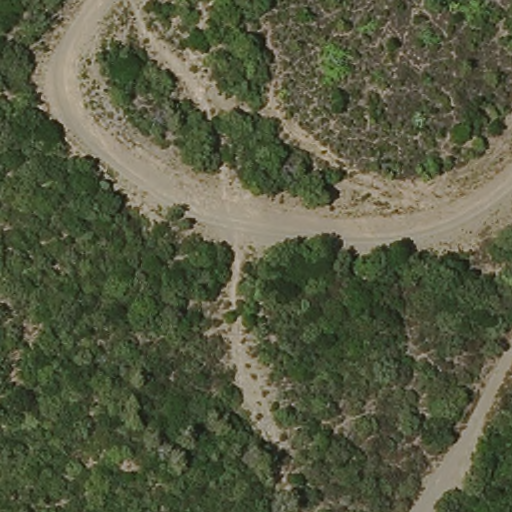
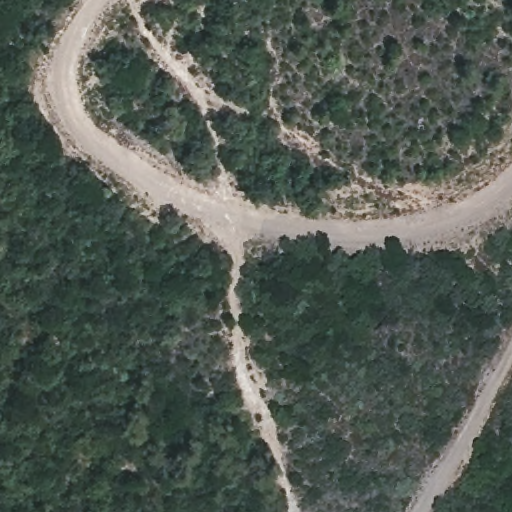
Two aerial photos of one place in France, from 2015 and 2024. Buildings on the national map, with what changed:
[]

